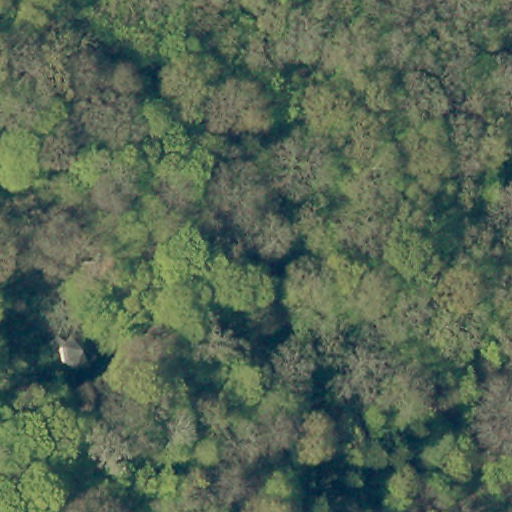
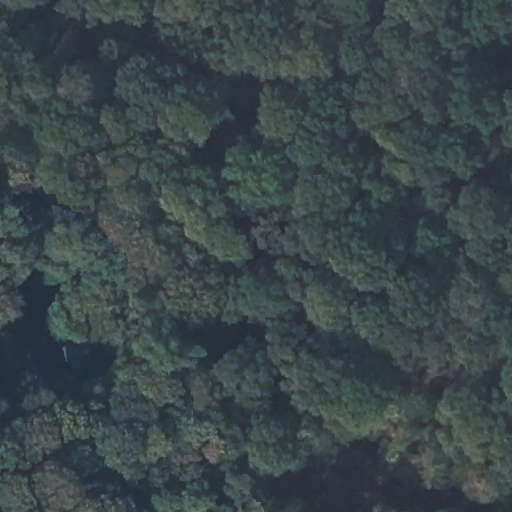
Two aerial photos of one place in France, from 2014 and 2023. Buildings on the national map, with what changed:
unchanged [(60,318),(70,326),(81,325),(88,328),(96,338),(96,349),(86,360),(70,360),(60,351),(60,337),(53,330),(60,318)]

